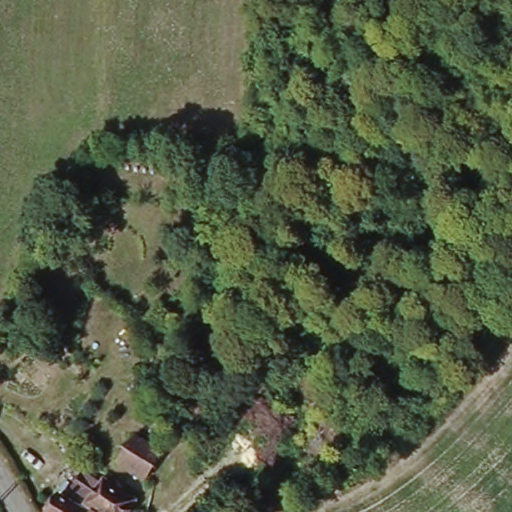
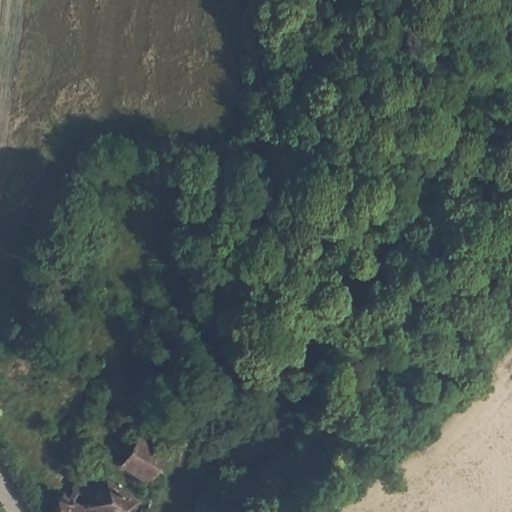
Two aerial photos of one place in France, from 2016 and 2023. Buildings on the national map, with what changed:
unchanged [(137,434),(166,454),(146,484),(116,465),(137,434)]
unchanged [(60,493),(67,497),(72,487),(82,469),(91,474),(94,470),(137,495),(128,512),(56,512),(51,509),(60,493)]

